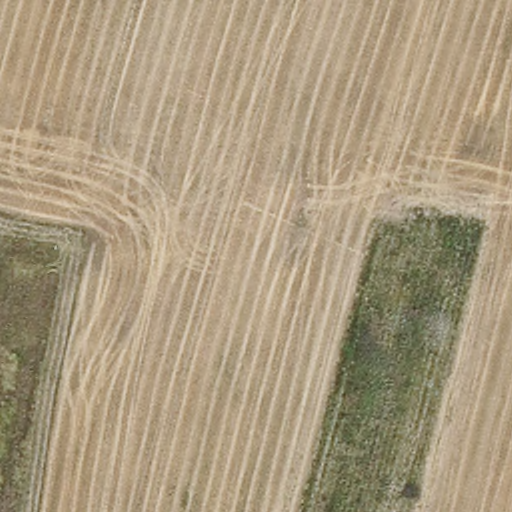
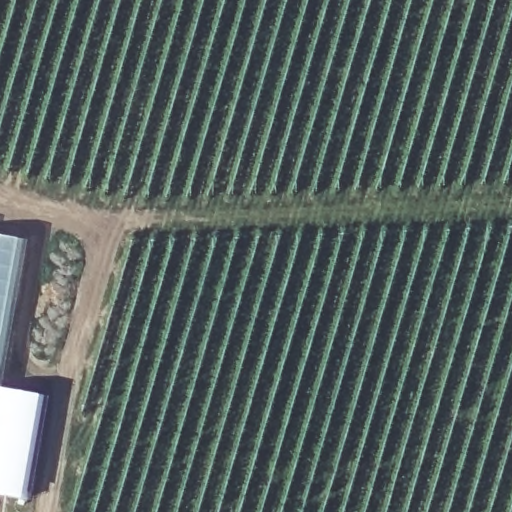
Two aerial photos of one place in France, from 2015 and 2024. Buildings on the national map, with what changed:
new [(22,239),(0,363),(0,235),(22,239)]
new [(42,394),(24,498),(0,495),(0,386),(42,394)]

